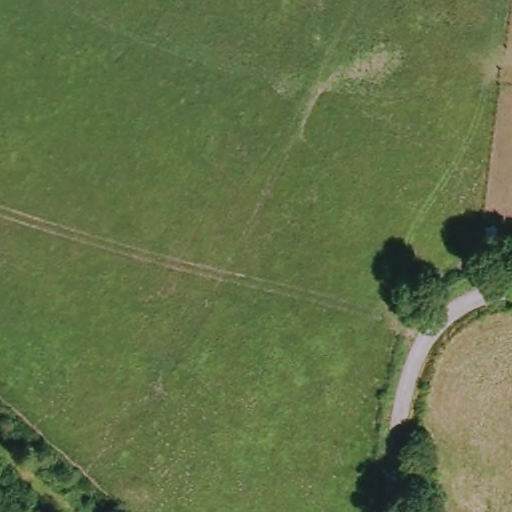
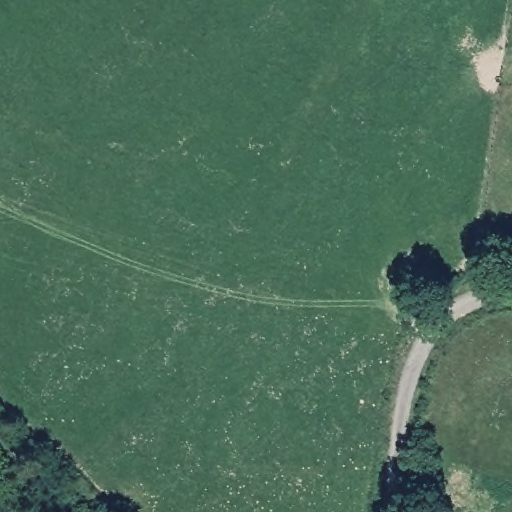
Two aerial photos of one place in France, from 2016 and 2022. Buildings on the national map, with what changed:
[]

